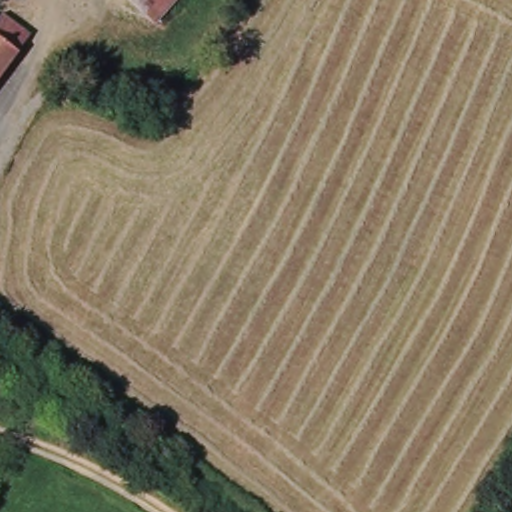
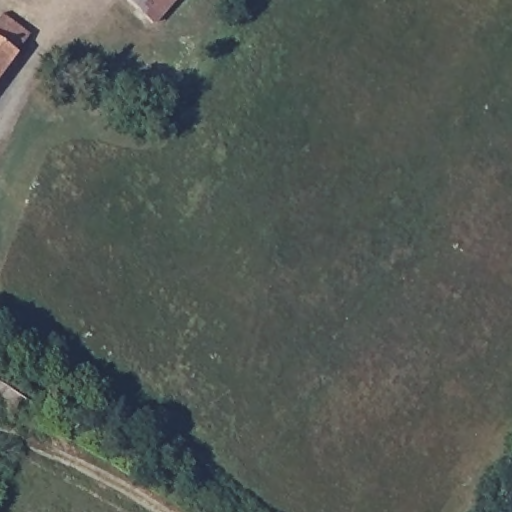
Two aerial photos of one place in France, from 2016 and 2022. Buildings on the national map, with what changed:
unchanged [(130,0),(177,0),(155,23),(130,0)]
unchanged [(25,35),(0,69),(0,16),(25,35)]
unchanged [(8,381),(0,394),(0,393),(0,376),(8,381)]

